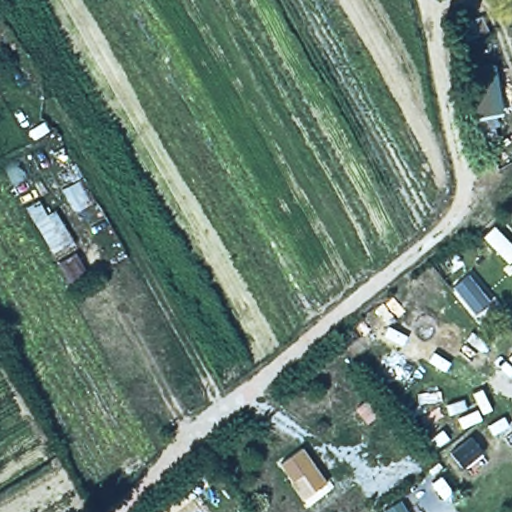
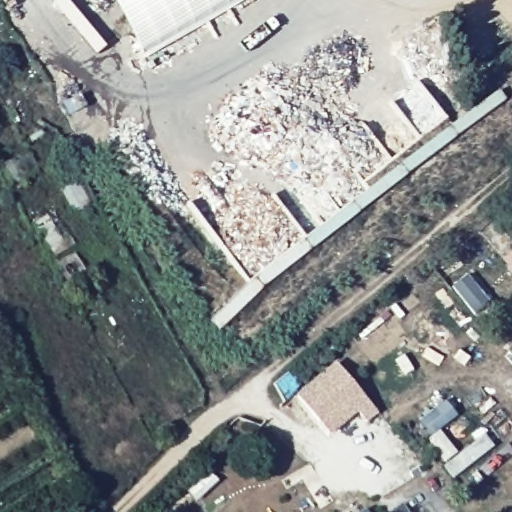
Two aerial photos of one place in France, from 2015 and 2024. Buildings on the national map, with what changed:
new [(140,53),(110,0),(227,0),(140,53)]
new [(330,437),(295,395),(334,361),(377,412),(366,422),(358,413),(330,437)]

